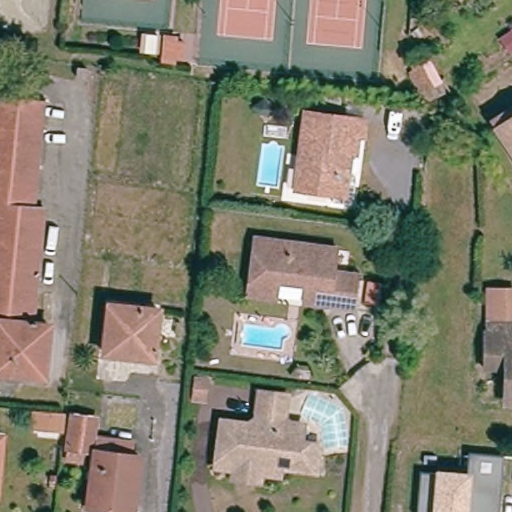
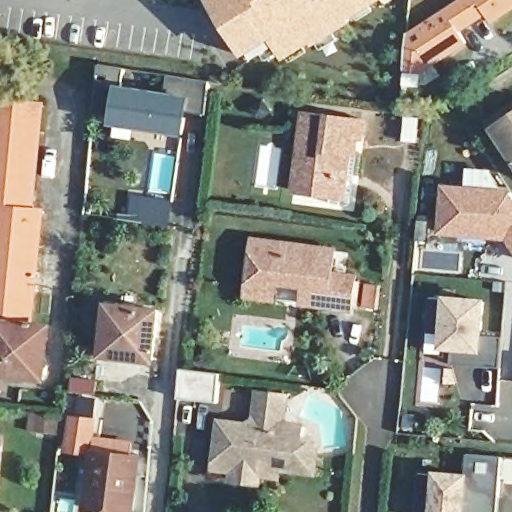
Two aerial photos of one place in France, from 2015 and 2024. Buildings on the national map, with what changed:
new [(351,20),(353,24),(315,47),(313,45),(286,61),(275,41),(246,57),(211,0),(383,0),(351,20)]
new [(494,24),(488,15),(462,32),(469,44),(422,74),(406,72),(409,33),(460,0),(512,0),(512,12),(494,24)]
demolished [(177,37),(177,42),(186,42),(185,62),(175,61),(175,65),(161,64),(164,36),(177,37)]
new [(211,81),(207,113),(190,111),(185,136),(112,125),(114,114),(95,113),(101,63),(127,67),(125,86),(165,92),(169,75),(211,81)]
demolished [(86,72),(85,81),(76,80),(78,71),(86,72)]
unchanged [(0,348),(2,327),(0,327),(0,108),(47,112),(38,216),(47,217),(37,331),(55,332),(50,386),(0,381),(0,348)]
unchanged [(487,133),(512,117),(512,170),(487,133)]
unchanged [(345,178),(342,202),(340,206),(324,204),(325,196),(287,192),(295,121),(352,127),(350,145),(345,144),(343,162),(341,176),(345,178)]
new [(507,240),(440,235),(443,184),(511,190),(512,191),(512,247),(507,240)]
unchanged [(239,298),(245,243),(325,252),(322,276),(346,278),(342,311),(296,305),(299,281),(266,277),(263,301),(239,298)]
new [(505,336),(502,366),(453,363),(454,351),(440,350),(442,329),(430,329),(432,297),(445,297),(445,293),(488,297),(486,332),(505,336)]
demolished [(511,373),(493,373),(493,296),(512,296),(512,408),(511,373)]
unchanged [(159,312),(154,363),(103,357),(109,306),(159,312)]
unchanged [(70,422),(73,398),(71,398),(72,387),(93,388),(92,401),(100,401),(97,425),(70,422)]
unchanged [(237,492),(238,484),(218,482),(219,471),(222,432),(255,436),(256,420),(258,403),(285,406),(283,422),(282,433),(305,436),(303,453),(320,455),(317,482),(280,478),(279,496),(237,492)]
unchanged [(65,478),(66,466),(70,432),(95,435),(91,468),(85,467),(84,481),(65,478)]
unchanged [(134,473),(141,475),(136,512),(88,512),(96,452),(136,458),(134,473)]
unchanged [(499,512),(417,512),(420,471),(467,473),(468,452),(503,456),(499,512)]

